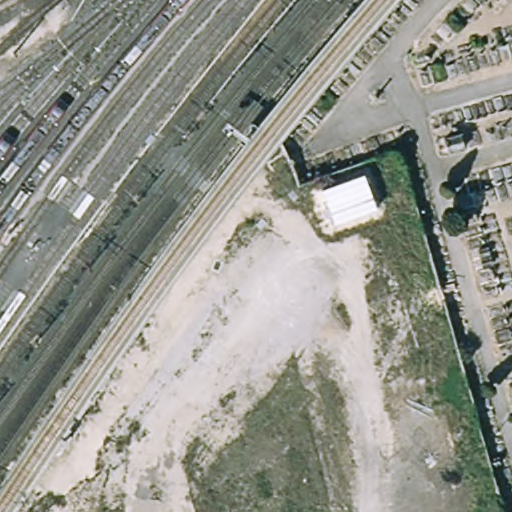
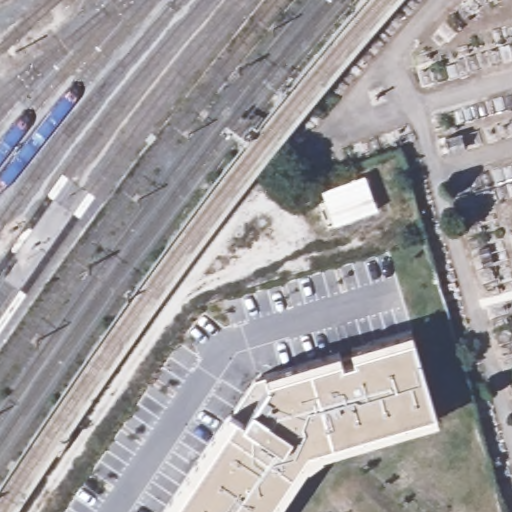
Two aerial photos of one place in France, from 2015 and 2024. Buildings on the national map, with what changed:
new [(365,177),(378,211),(336,227),(323,192),(365,177)]
demolished [(51,225),(0,298),(0,221),(15,199),(51,225)]
new [(409,332),(412,340),(352,357),(350,350),(409,332)]
new [(236,418),(233,416),(264,376),(338,353),(340,361),(341,365),(356,360),(355,356),(412,340),(434,416),(437,422),(320,457),(307,466),(301,462),(268,512),(173,512),(236,418)]
new [(183,482),(229,414),(231,415),(236,418),(173,512),(163,512),(183,482)]
new [(301,462),(307,466),(277,512),(268,512),(301,462)]

